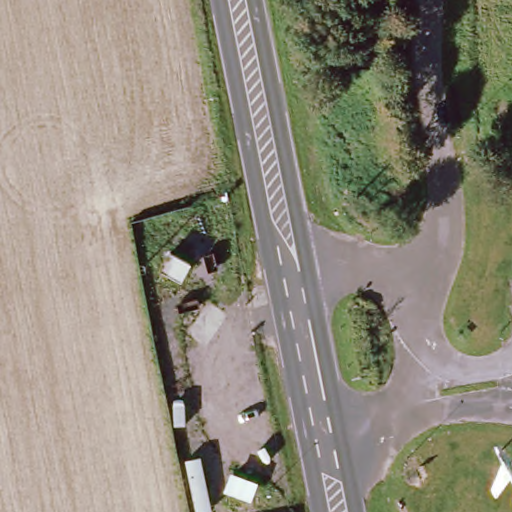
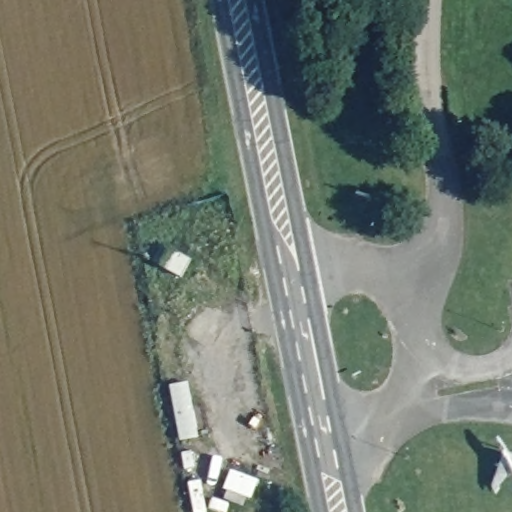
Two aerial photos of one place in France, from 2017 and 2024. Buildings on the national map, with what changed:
unchanged [(192,266),(183,283),(157,269),(167,252),(192,266)]
unchanged [(234,476),(254,490),(246,501),(226,487),(234,476)]

